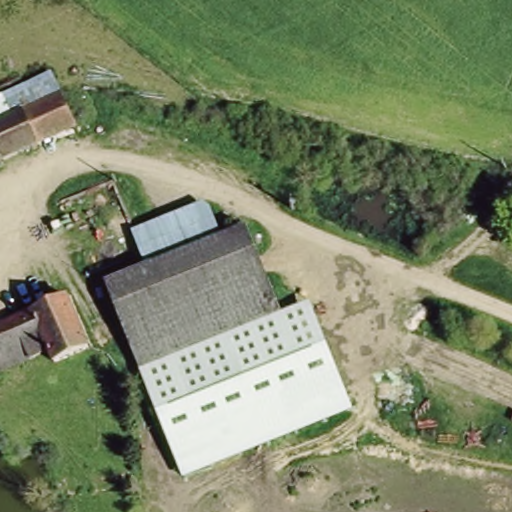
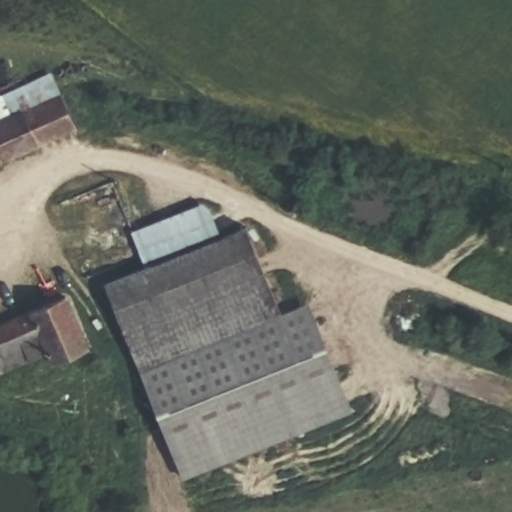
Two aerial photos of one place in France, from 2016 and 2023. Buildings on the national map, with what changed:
unchanged [(91,103),(70,108),(80,126),(0,161),(0,121),(82,84),(91,103)]
unchanged [(109,281),(147,267),(132,232),(212,199),(225,236),(247,223),(282,311),(142,365),(109,281)]
unchanged [(90,347),(64,358),(57,342),(0,365),(0,320),(69,293),(90,347)]
unchanged [(282,311),(310,301),(353,411),(184,480),(142,365),(282,311)]

